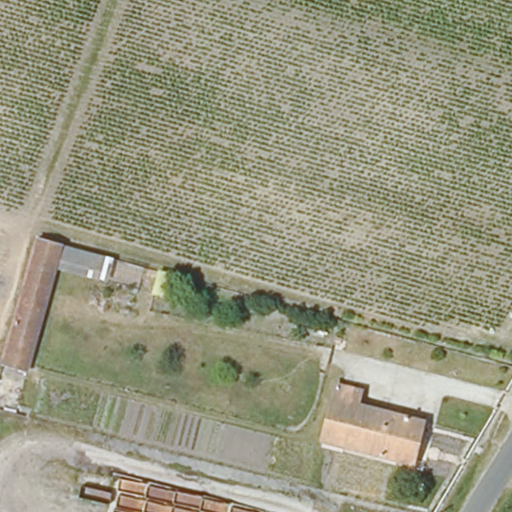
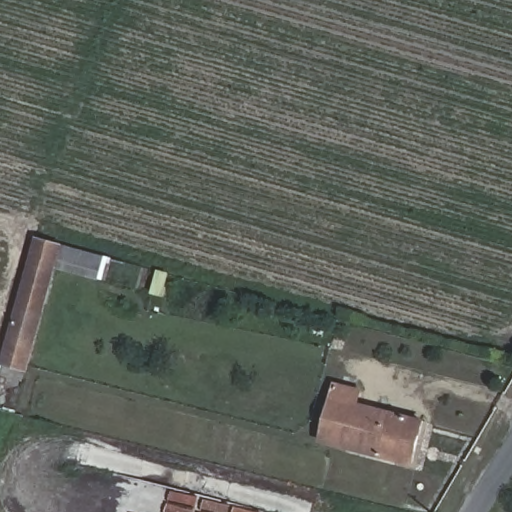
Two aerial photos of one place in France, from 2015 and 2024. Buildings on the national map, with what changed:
unchanged [(95,277),(57,267),(29,372),(0,365),(36,239),(101,255),(95,277)]
unchanged [(355,407),(421,425),(411,467),(317,443),(334,385),(358,391),(355,407)]

